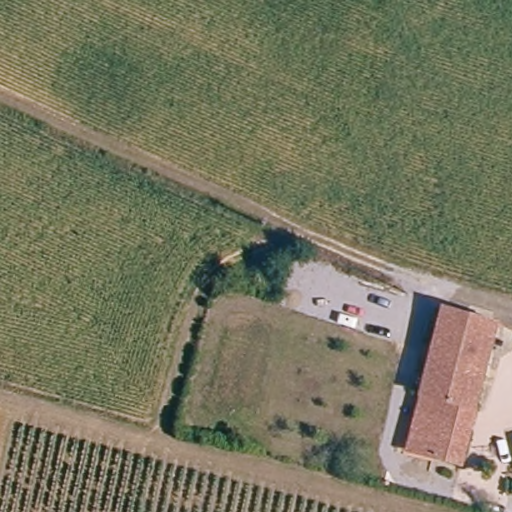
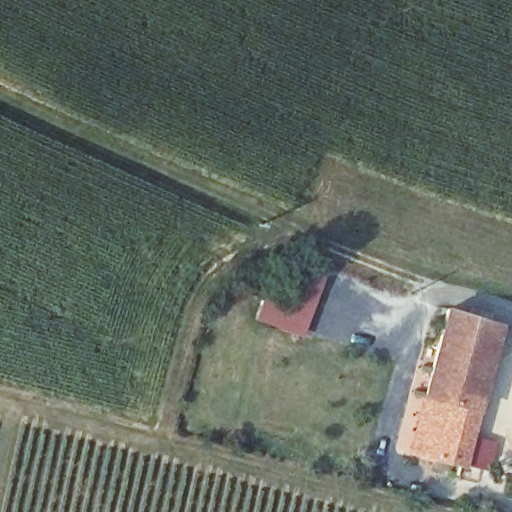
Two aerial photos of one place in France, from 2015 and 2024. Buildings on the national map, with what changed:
new [(301,337),(255,319),(262,298),(285,310),(302,268),(325,277),(301,337)]
unchanged [(477,407),(472,424),(463,455),(435,448),(415,443),(429,389),(450,308),(500,320),(477,407)]

